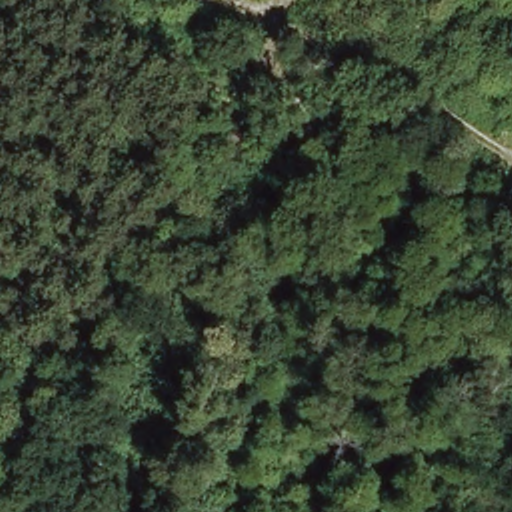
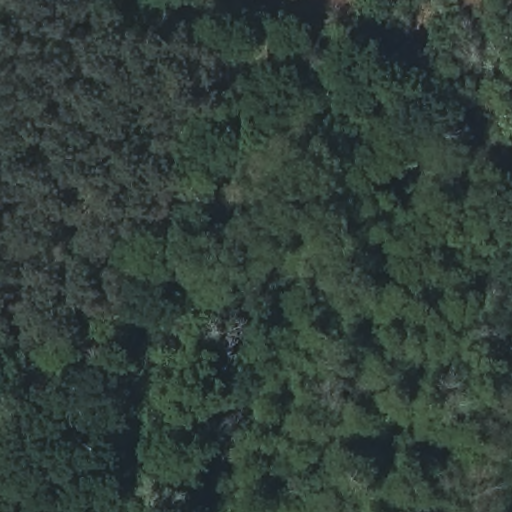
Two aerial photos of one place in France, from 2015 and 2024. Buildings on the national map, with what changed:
[]

